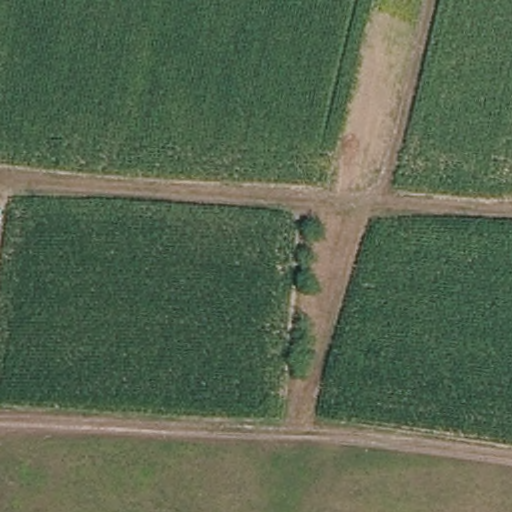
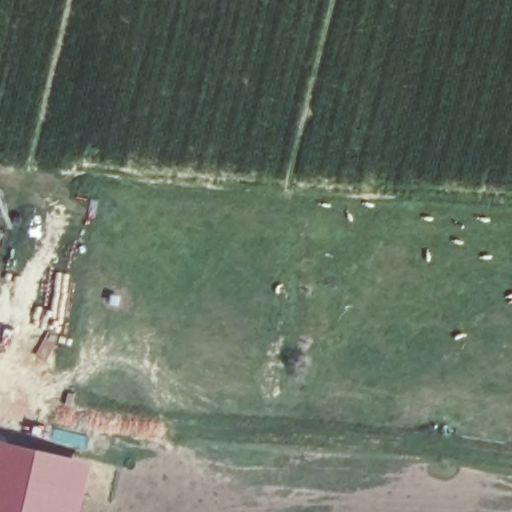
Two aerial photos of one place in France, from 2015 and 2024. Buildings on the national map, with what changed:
new [(79,512),(0,512),(0,442),(90,462),(79,512)]

